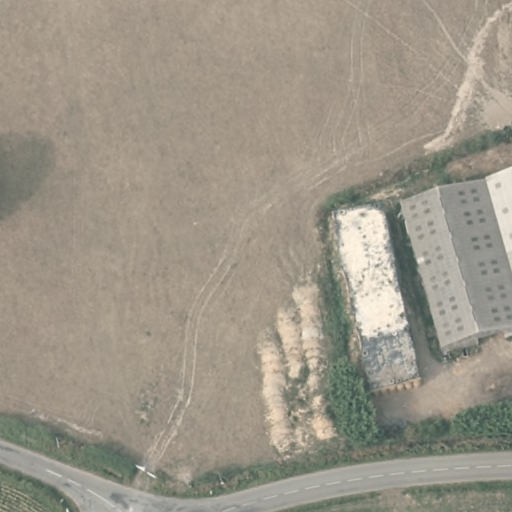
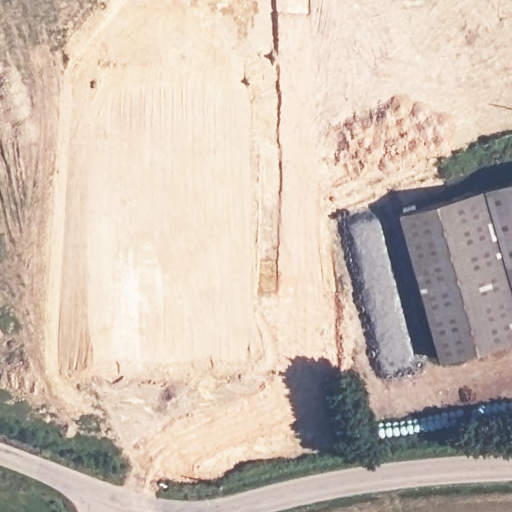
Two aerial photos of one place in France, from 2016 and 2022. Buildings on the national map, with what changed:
unchanged [(512,181),(512,292),(480,190),(512,181)]
unchanged [(479,186),(480,190),(512,292),(512,338),(452,355),(404,211),(479,186)]

